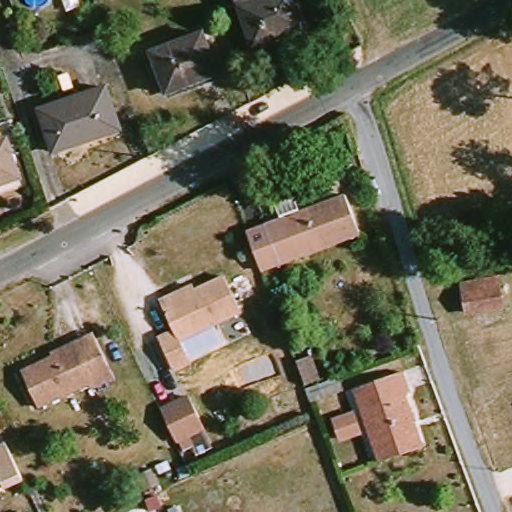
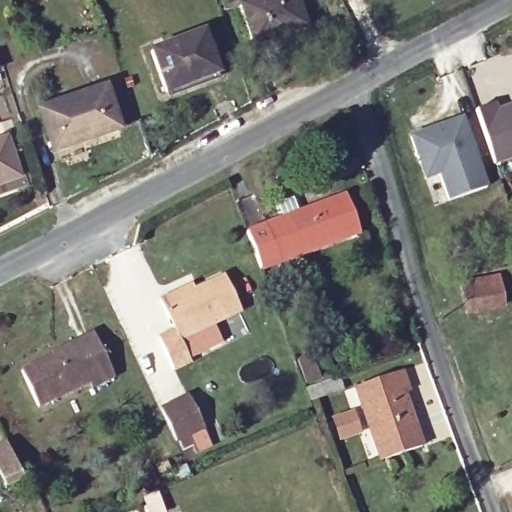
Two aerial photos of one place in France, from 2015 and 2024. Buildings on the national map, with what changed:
unchanged [(248,0),(293,0),(256,17),(248,0)]
unchanged [(304,0),(317,27),(270,49),(256,17),(293,0),(304,0)]
unchanged [(227,65),(180,84),(165,47),(214,30),(227,65)]
unchanged [(129,124),(71,145),(59,105),(117,84),(129,124)]
new [(494,106),(498,116),(512,111),(512,159),(496,165),(477,112),(494,106)]
new [(421,166),(411,139),(463,120),(487,189),(450,202),(441,176),(427,181),(421,166)]
unchanged [(0,184),(0,142),(19,136),(32,172),(0,184)]
unchanged [(260,226),(276,220),(292,214),(287,198),(305,192),(311,209),(359,191),(372,229),(292,261),(275,267),(260,226)]
unchanged [(255,308),(196,337),(205,357),(182,368),(166,332),(185,323),(175,301),(172,293),(207,277),(211,285),(238,272),(255,308)]
unchanged [(503,307),(466,316),(462,296),(499,287),(503,307)]
unchanged [(124,375),(102,386),(99,379),(50,402),(34,366),(84,342),(81,337),(102,327),(124,375)]
unchanged [(320,376),(312,350),(326,345),(337,370),(320,376)]
unchanged [(421,390),(416,391),(434,440),(392,455),(367,387),(413,369),(421,390)]
unchanged [(199,423),(172,436),(170,437),(155,405),(157,405),(184,392),(199,423)]
unchanged [(363,445),(348,451),(345,452),(338,433),(342,432),(357,427),(363,445)]
new [(19,479),(0,488),(0,444),(2,443),(19,479)]
unchanged [(174,467),(167,471),(164,462),(170,460),(174,467)]

